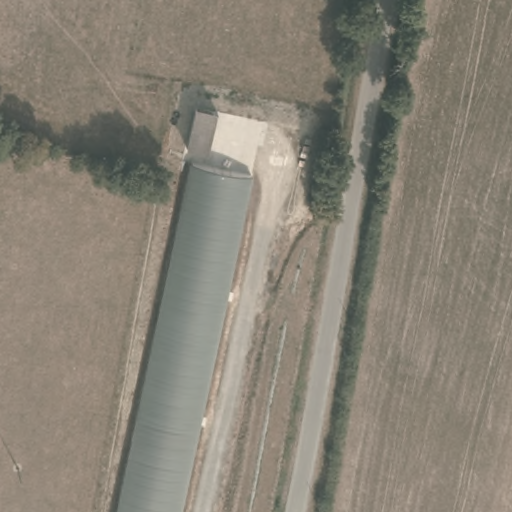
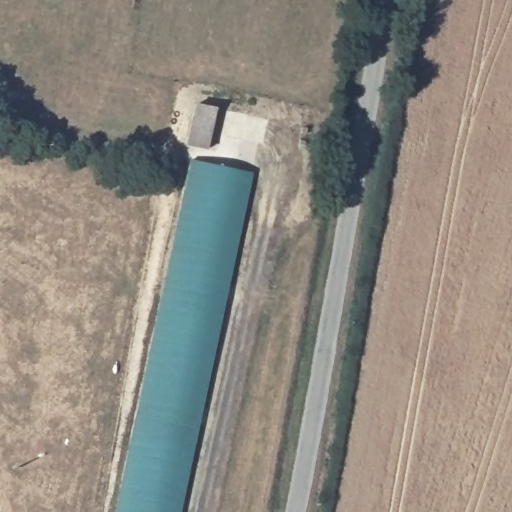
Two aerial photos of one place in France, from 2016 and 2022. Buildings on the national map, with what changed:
unchanged [(245,171),(175,512),(113,512),(185,159),(245,171)]

